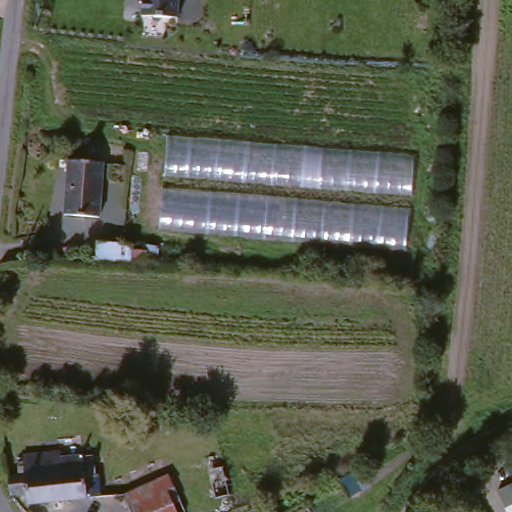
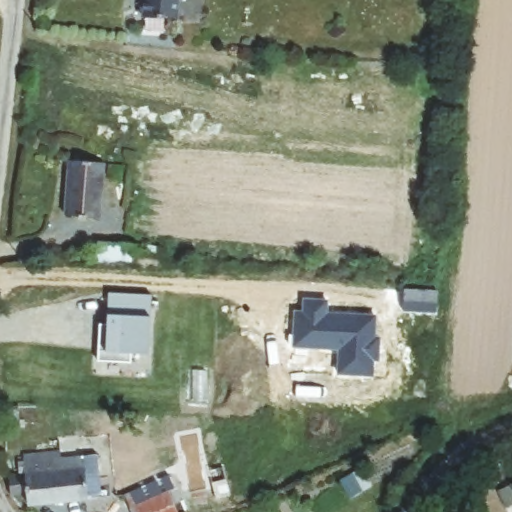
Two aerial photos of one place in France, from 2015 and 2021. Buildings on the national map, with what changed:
unchanged [(180,17),(140,14),(141,0),(181,0),(180,17)]
demolished [(414,154),(406,248),(159,227),(168,134),(414,154)]
unchanged [(66,157),(104,161),(98,215),(61,210),(66,157)]
unchanged [(158,244),(157,266),(95,263),(97,239),(158,244)]
unchanged [(87,501),(67,501),(29,501),(29,492),(14,493),(14,488),(9,487),(1,487),(0,476),(9,476),(24,477),(24,455),(64,454),(66,460),(84,458),(87,501)]
unchanged [(164,491),(173,512),(138,512),(129,491),(171,477),(175,488),(164,491)]

